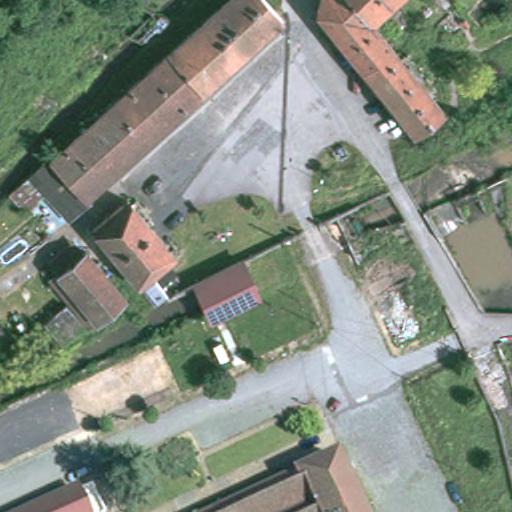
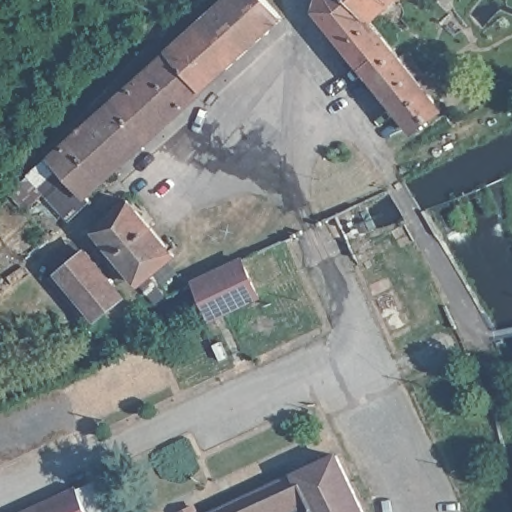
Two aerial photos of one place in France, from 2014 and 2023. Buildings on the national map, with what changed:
unchanged [(226,69),(204,89),(128,157),(84,197),(49,157),(44,152),(46,150),(54,159),(68,143),(95,120),(170,52),(193,31),(227,0),(266,0),(283,18),(226,69)]
unchanged [(366,86),(374,79),(322,16),(326,0),(403,0),(376,25),(406,63),(412,58),(419,67),(417,68),(429,83),(431,81),(441,94),(434,99),(447,114),(419,136),(385,94),(376,100),(366,86)]
unchanged [(46,192),(26,209),(12,193),(49,157),(84,197),(89,202),(71,219),(46,192)]
unchanged [(144,279),(98,224),(133,195),(176,246),(179,250),(173,256),(183,267),(165,282),(156,270),(144,279)]
unchanged [(63,268),(90,246),(129,292),(103,314),(94,321),(55,275),(63,268)]
unchanged [(256,290),(259,296),(211,319),(208,312),(201,297),(195,282),(196,281),(243,259),(249,274),(256,290)]
unchanged [(58,310),(71,299),(89,320),(75,331),(68,338),(49,316),(58,310)]
unchanged [(363,512),(215,512),(223,508),(293,475),(294,476),(336,456),(341,467),(363,512)]
unchanged [(30,512),(73,492),(77,490),(87,512),(30,512)]

